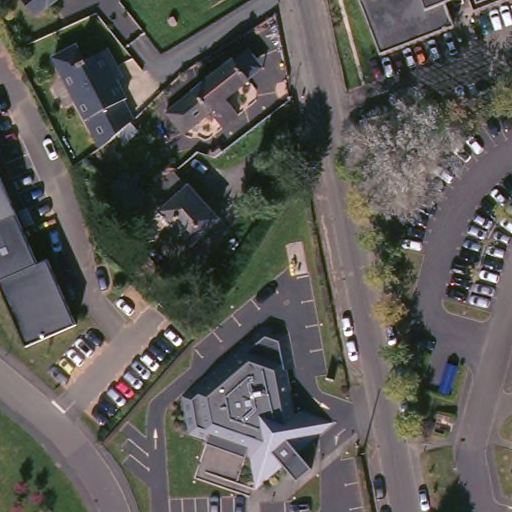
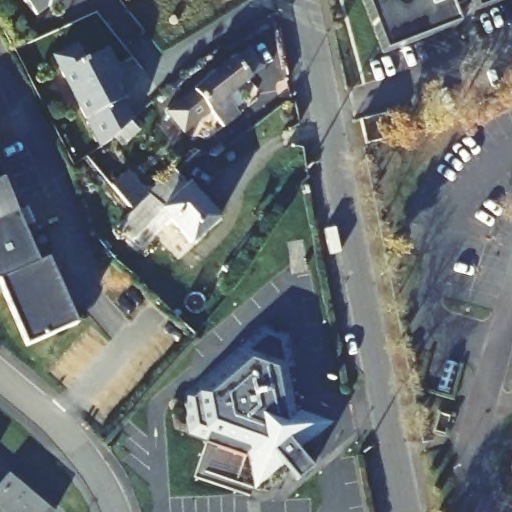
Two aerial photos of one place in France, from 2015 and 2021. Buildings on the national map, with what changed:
unchanged [(52,4),(35,16),(24,0),(53,0),(52,4)]
unchanged [(447,2),(455,22),(385,49),(366,0),(453,0),(447,2)]
unchanged [(464,1),(454,5),(453,0),(464,0),(464,1)]
unchanged [(477,9),(474,0),(500,0),(477,9)]
unchanged [(121,61),(130,78),(124,81),(138,111),(135,112),(145,132),(132,142),(127,146),(111,158),(67,67),(89,56),(97,72),(121,61)]
unchanged [(186,138),(170,118),(240,65),(256,84),(186,138)]
unchanged [(366,124),(391,119),(395,142),(370,148),(366,124)]
unchanged [(183,174),(225,224),(197,247),(172,216),(135,243),(116,222),(124,215),(115,206),(105,193),(116,182),(126,195),(135,205),(140,201),(131,191),(120,178),(131,168),(151,191),(150,192),(156,198),(183,174)]
unchanged [(47,260),(74,325),(24,346),(0,287),(0,179),(34,263),(47,260)]
unchanged [(307,366),(298,371),(309,423),(320,428),(307,438),(313,450),(265,486),(259,453),(249,450),(253,436),(230,426),(222,442),(201,435),(195,392),(279,325),(302,332),(307,366)]
new [(22,474),(69,512),(0,512),(0,490),(5,494),(22,474)]

